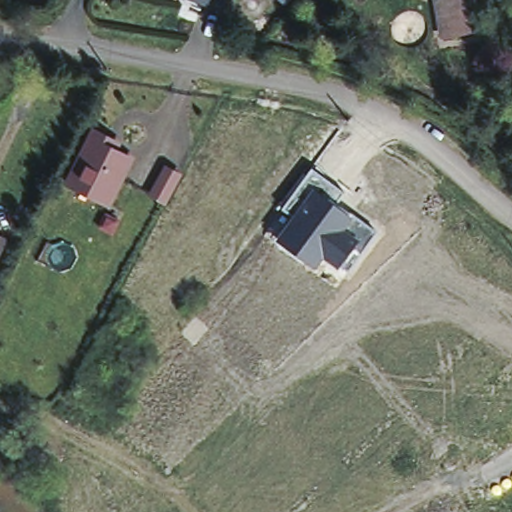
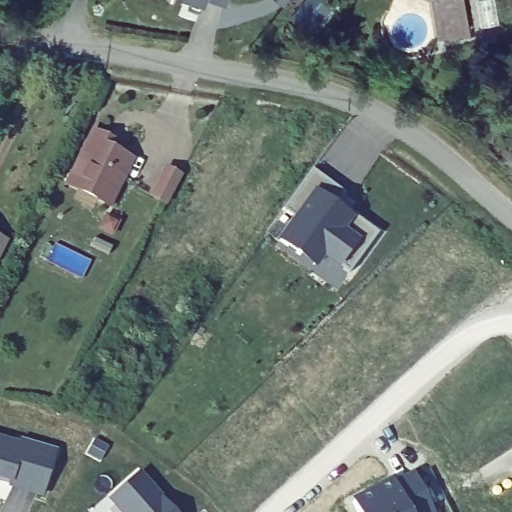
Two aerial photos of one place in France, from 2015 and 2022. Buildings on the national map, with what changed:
unchanged [(287,3),(282,0),(289,0),(287,3)]
unchanged [(461,37),(437,41),(429,0),(454,0),(461,37)]
unchanged [(67,183),(72,174),(90,138),(93,131),(118,143),(114,150),(130,159),(112,194),(107,203),(67,183)]
unchanged [(179,174),(165,201),(151,193),(165,167),(179,174)]
unchanged [(346,273),(325,259),(314,269),(275,239),(291,217),(282,209),(310,168),(343,192),(335,203),(375,230),(346,273)]
unchanged [(2,235),(0,239),(0,234),(2,235)]
new [(20,443),(21,439),(55,449),(42,494),(8,484),(8,483),(0,481),(0,437),(20,443)]
new [(162,496),(175,512),(116,512),(105,499),(139,470),(163,494),(162,496)]
new [(393,481),(395,484),(415,474),(434,511),(434,512),(358,512),(353,501),(393,481)]

